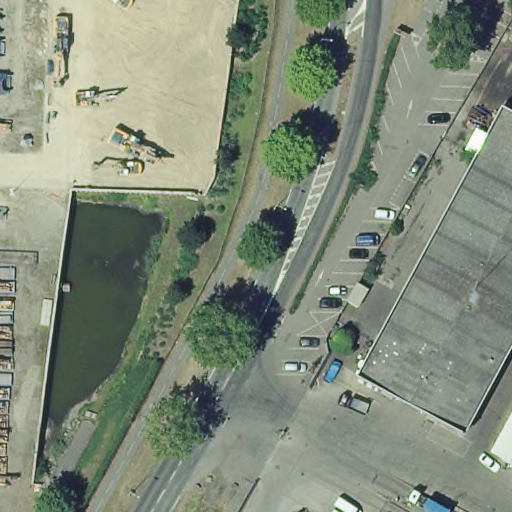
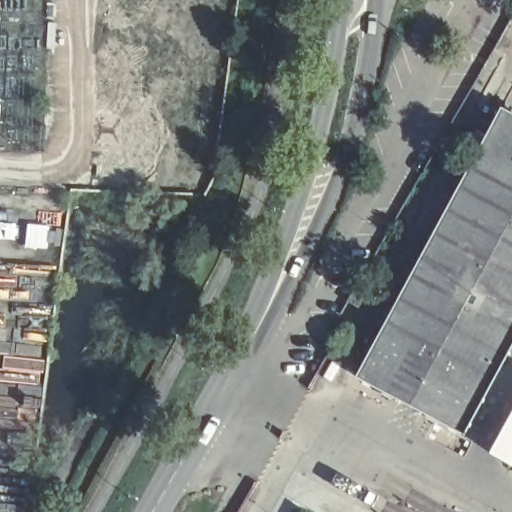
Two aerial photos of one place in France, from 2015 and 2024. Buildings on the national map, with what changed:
unchanged [(497,113),(512,121),(512,337),(459,436),(354,380),(497,113)]
unchanged [(504,472),(485,459),(512,406),(512,457),(504,472)]

